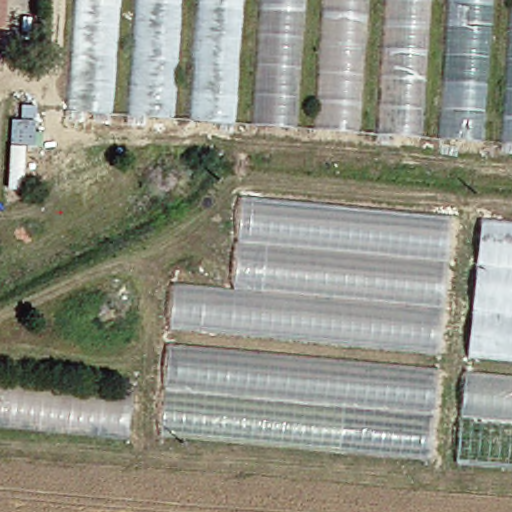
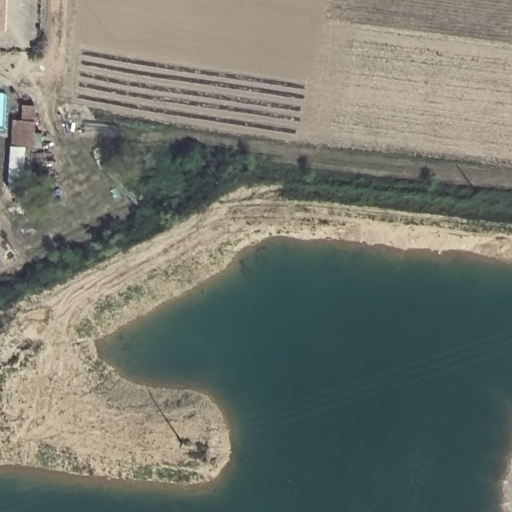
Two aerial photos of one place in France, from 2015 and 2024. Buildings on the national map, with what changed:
demolished [(105,119),(58,116),(66,0),(113,0),(105,119)]
demolished [(168,117),(120,114),(127,0),(175,0),(168,117)]
demolished [(228,129),(182,127),(190,0),(236,0),(228,129)]
demolished [(289,141),(242,138),(252,0),(298,0),(289,141)]
demolished [(351,142),(307,141),(317,0),(360,0),(351,142)]
demolished [(417,147),(367,144),(377,0),(426,0),(417,147)]
demolished [(476,149),(430,147),(441,0),(485,0),(476,149)]
demolished [(501,0),(512,0),(512,152),(491,150),(501,0)]
new [(37,132),(44,132),(43,148),(27,147),(25,181),(10,180),(13,119),(22,120),(23,105),(37,106),(37,132)]
demolished [(168,322),(173,278),(228,285),(235,196),(446,216),(432,346),(168,322)]
demolished [(476,219),(512,222),(512,354),(464,349),(476,219)]
demolished [(420,456),(154,432),(162,345),(429,370),(420,456)]
demolished [(460,371),(512,376),(512,463),(451,457),(460,371)]
demolished [(121,435),(0,423),(0,382),(125,393),(121,435)]

